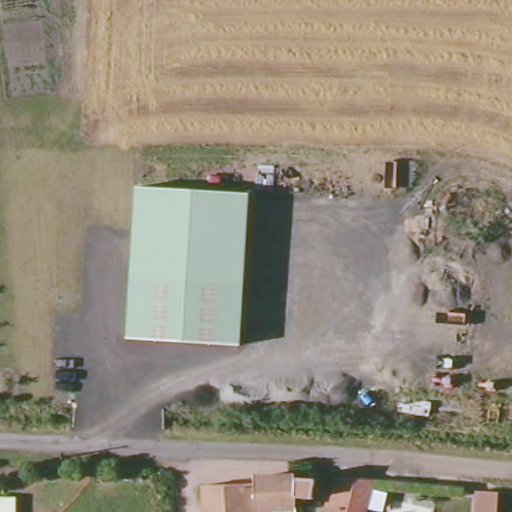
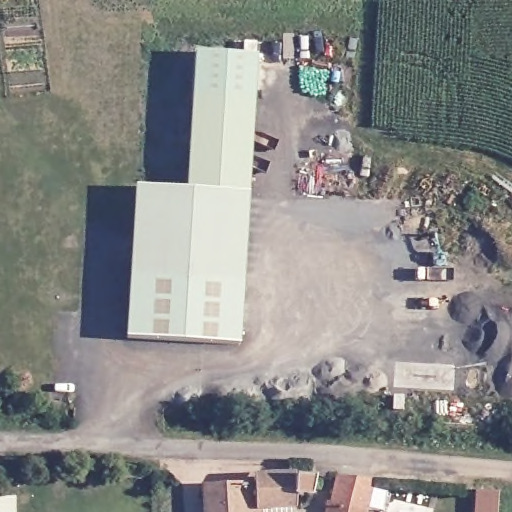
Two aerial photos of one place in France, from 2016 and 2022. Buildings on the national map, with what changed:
new [(187,190),(196,53),(258,56),(251,195),(187,190)]
unchanged [(137,187),(251,195),(242,346),(128,337),(137,187)]
unchanged [(244,482),(245,476),(306,479),(302,501),(286,500),(286,509),(249,509),(249,512),(197,512),(196,486),(244,482)]
unchanged [(363,512),(333,512),(339,490),(367,495),(363,512)]

